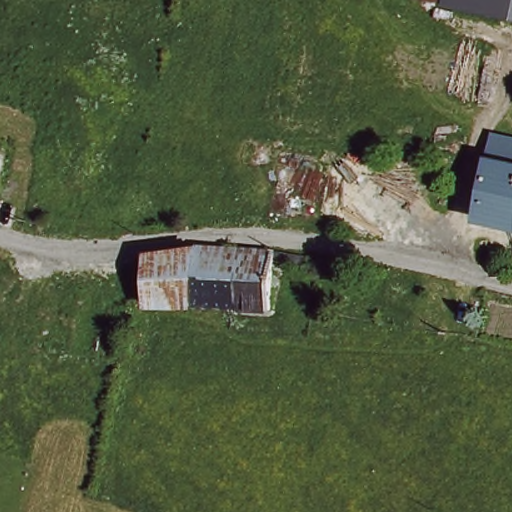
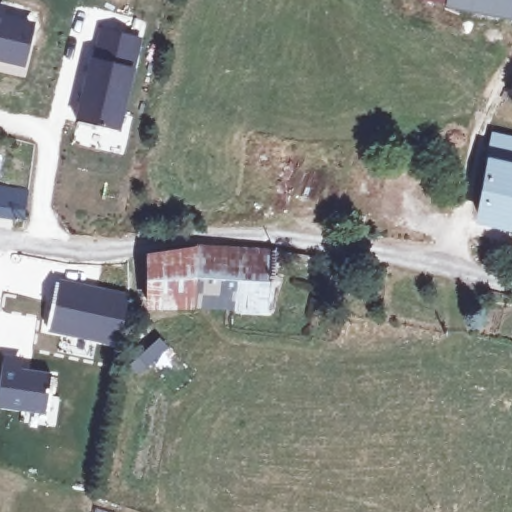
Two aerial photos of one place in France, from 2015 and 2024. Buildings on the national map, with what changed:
unchanged [(421,0),(459,0),(457,7),(421,0)]
unchanged [(457,7),(459,0),(512,0),(512,17),(457,7)]
new [(25,68),(0,62),(0,4),(37,13),(25,68)]
new [(80,88),(97,24),(143,37),(120,130),(74,119),(80,88)]
unchanged [(512,140),(512,224),(481,217),(498,137),(512,140)]
new [(24,221),(0,219),(0,184),(27,188),(24,221)]
unchanged [(267,314),(186,310),(191,253),(192,249),(270,256),(267,308),(267,314)]
unchanged [(186,310),(147,311),(146,260),(191,253),(186,310)]
new [(129,294),(117,346),(48,331),(59,279),(129,294)]
new [(22,369),(53,373),(48,413),(0,406),(0,376),(4,353),(22,355),(22,369)]

